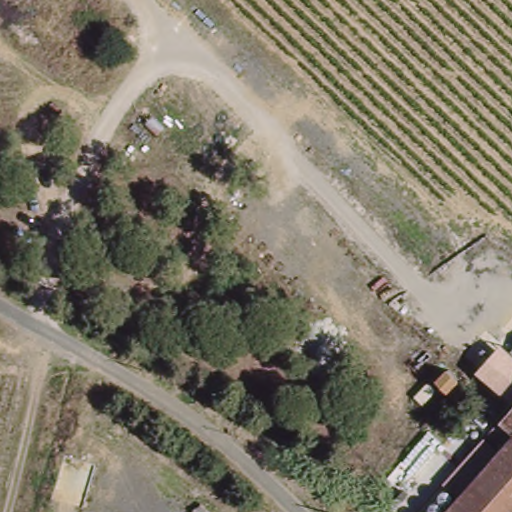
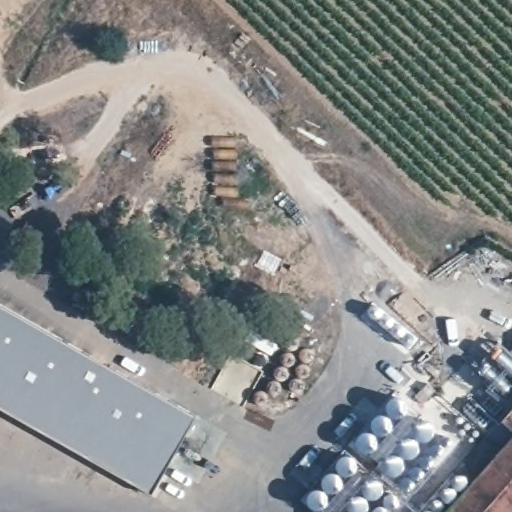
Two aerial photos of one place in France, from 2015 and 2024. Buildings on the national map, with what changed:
new [(0,407),(0,305),(196,417),(152,493),(0,407)]
new [(403,499),(391,512),(321,512),(305,498),(345,453),(350,457),(397,404),(440,443),(397,494),(403,499)]
unchanged [(507,420),(512,414),(512,427),(507,422),(507,420)]
unchanged [(506,454),(507,445),(512,439),(512,512),(447,512),(498,454),(506,454)]
new [(420,512),(456,470),(472,483),(447,512),(420,512)]

